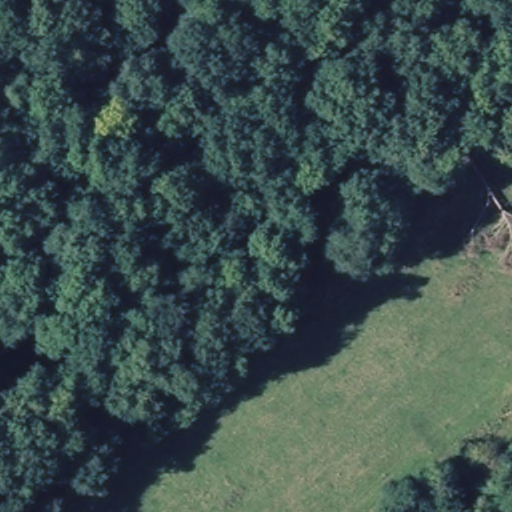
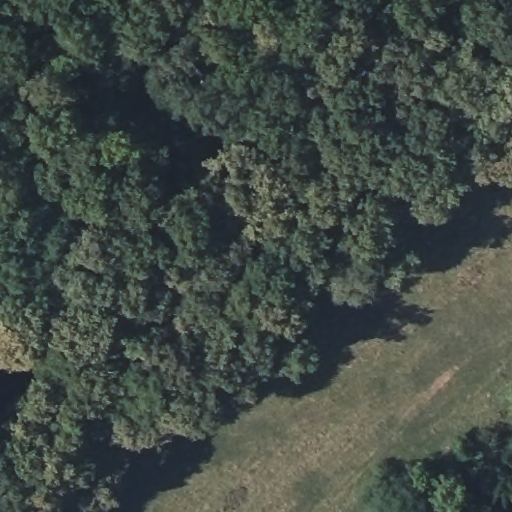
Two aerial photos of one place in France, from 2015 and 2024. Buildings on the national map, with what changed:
unchanged [(480,512),(478,512),(478,511),(480,512)]

